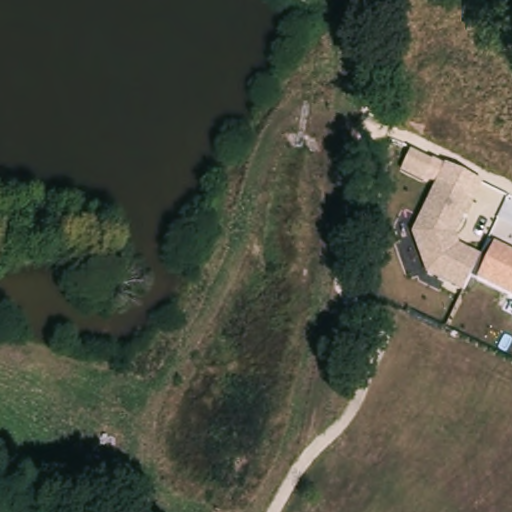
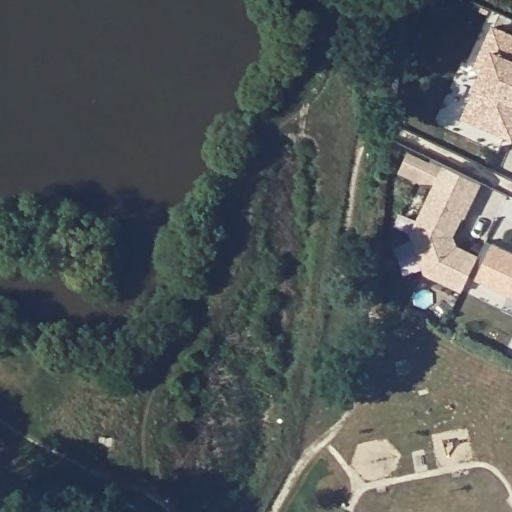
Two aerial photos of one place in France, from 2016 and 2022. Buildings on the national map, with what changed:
new [(477,89),(488,60),(478,56),(493,23),(512,32),(512,140),(463,120),(477,89)]
unchanged [(463,291),(427,275),(412,234),(435,187),(402,171),(411,153),(443,169),(445,166),(484,186),(476,202),(474,201),(457,239),(460,246),(485,259),(494,244),(512,252),(512,298),(470,277),(463,291)]

